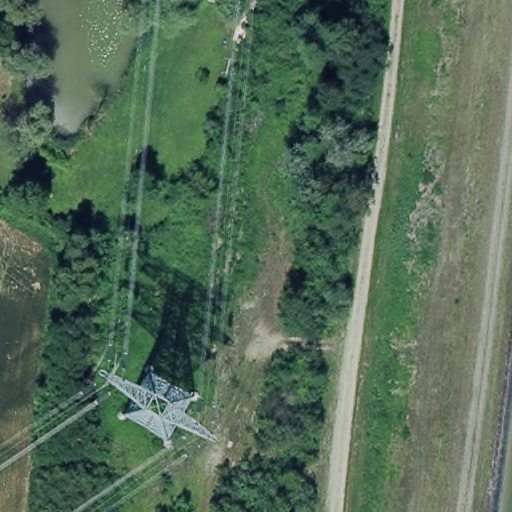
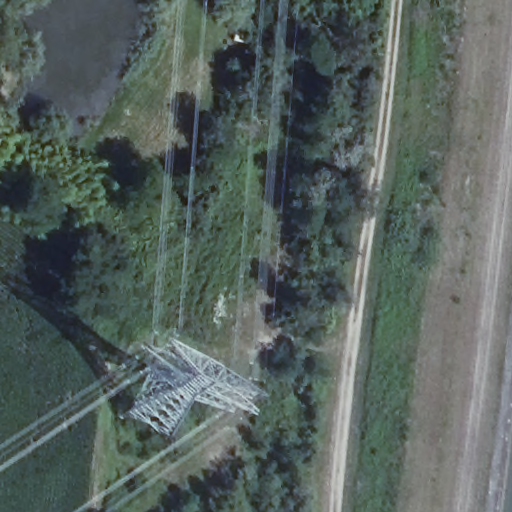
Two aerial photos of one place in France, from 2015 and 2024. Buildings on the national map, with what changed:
unchanged [(271,6),(243,0),(271,0),(271,6)]

